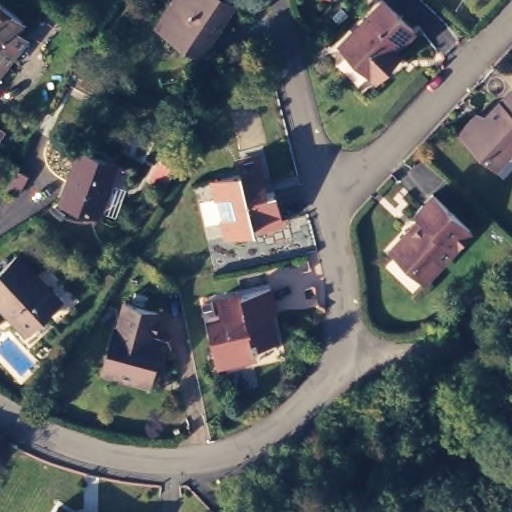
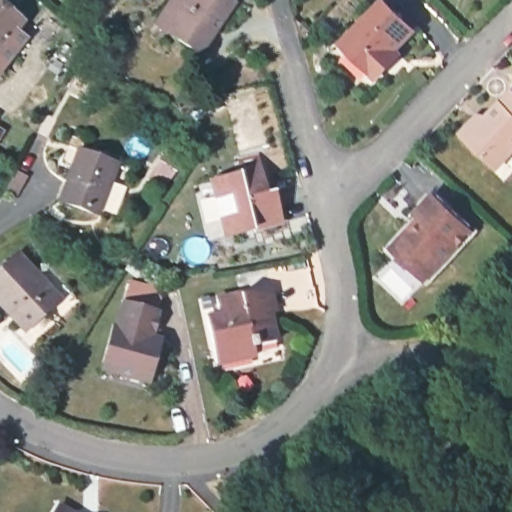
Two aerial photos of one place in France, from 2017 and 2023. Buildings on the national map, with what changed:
unchanged [(24,34),(0,65),(0,0),(2,0),(23,16),(15,26),(24,34)]
unchanged [(234,0),(223,16),(201,50),(173,31),(156,20),(159,15),(169,0),(234,0)]
unchanged [(376,75),(345,44),(340,39),(354,26),(378,0),(387,0),(413,26),(394,45),(399,50),(392,59),(376,75)]
unchanged [(474,119),(479,124),(511,91),(512,91),(512,152),(496,169),(459,134),(474,119)]
unchanged [(79,145),(117,159),(98,210),(60,196),(79,145)]
unchanged [(274,191),(281,222),(226,235),(213,181),(241,174),(238,161),(256,156),(260,170),(266,193),(274,191)]
unchanged [(426,279),(412,265),(410,267),(391,249),(409,229),(412,232),(418,226),(417,220),(419,218),(416,213),(432,195),(471,231),(426,279)]
unchanged [(0,303),(0,271),(18,255),(59,299),(31,326),(25,331),(9,314),(0,303)]
unchanged [(258,345),(254,346),(256,355),(217,364),(207,318),(221,315),(217,299),(270,287),(274,305),(276,312),(271,313),(276,335),(276,341),(258,345)]
unchanged [(122,376),(113,374),(98,369),(99,363),(109,326),(113,327),(119,302),(153,312),(148,336),(154,339),(151,352),(153,352),(146,376),(145,382),(122,376)]
unchanged [(71,512),(56,512),(59,506),(71,512)]

